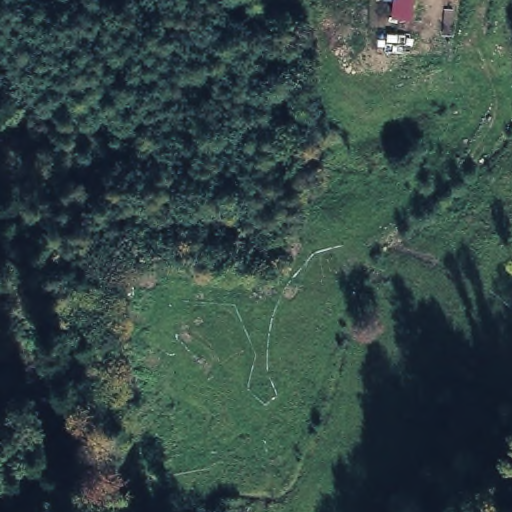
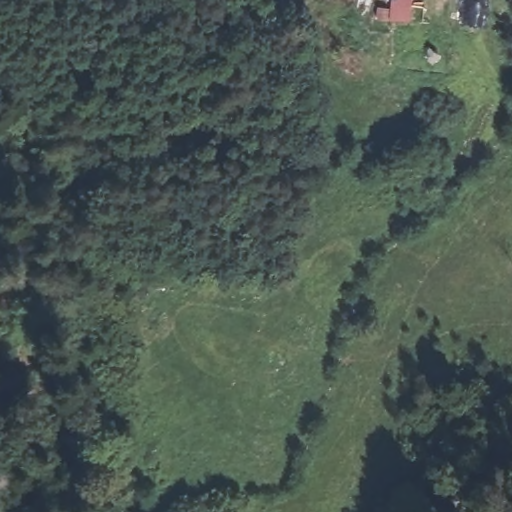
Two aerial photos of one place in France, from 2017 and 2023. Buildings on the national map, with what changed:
[]

